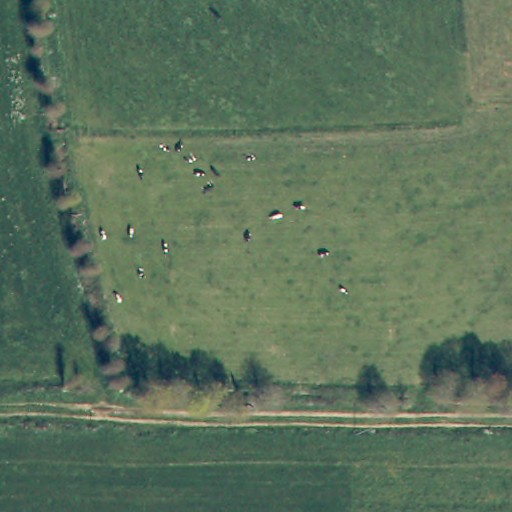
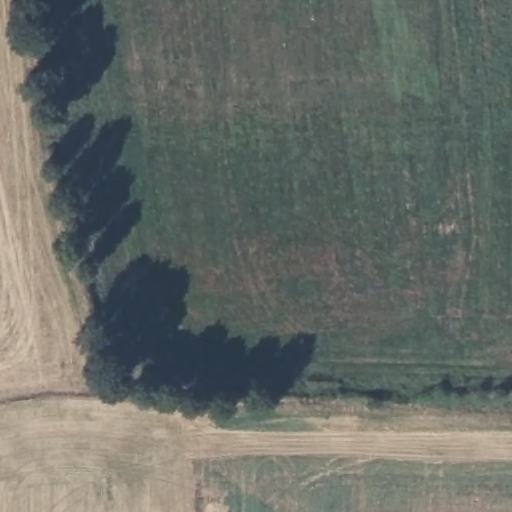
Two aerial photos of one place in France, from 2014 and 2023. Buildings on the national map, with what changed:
[]

